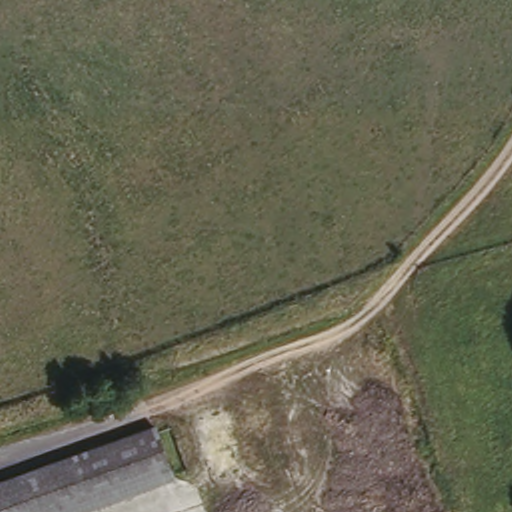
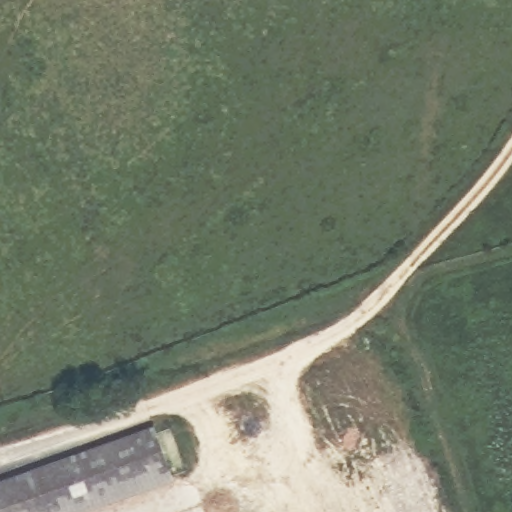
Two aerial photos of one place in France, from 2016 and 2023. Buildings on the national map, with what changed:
unchanged [(156,428),(172,480),(85,512),(0,512),(0,484),(156,428)]

